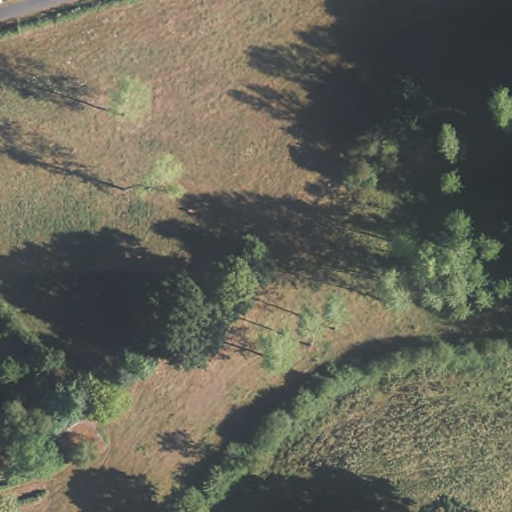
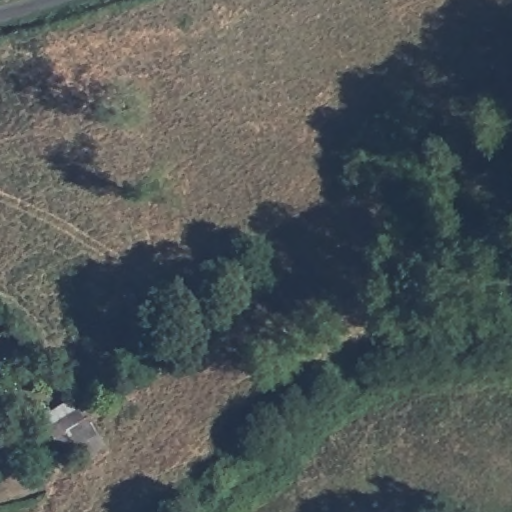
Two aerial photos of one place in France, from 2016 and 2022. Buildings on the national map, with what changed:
unchanged [(105,450),(77,460),(62,435),(85,420),(105,450)]

